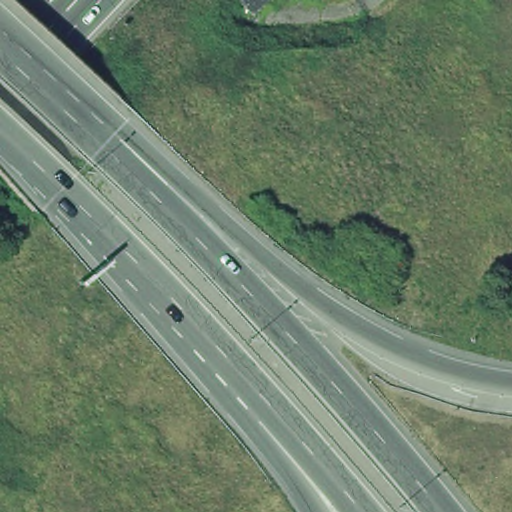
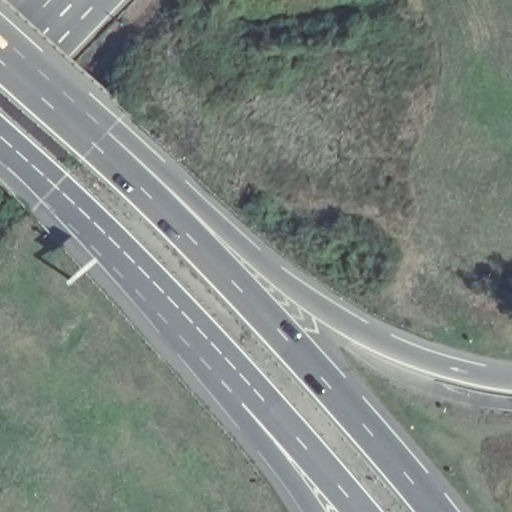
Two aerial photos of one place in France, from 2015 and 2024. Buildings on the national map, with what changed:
unchanged [(239,0),(264,0),(252,12),(239,0)]

